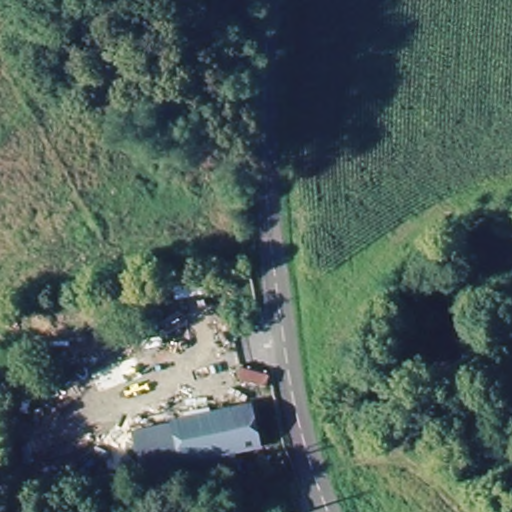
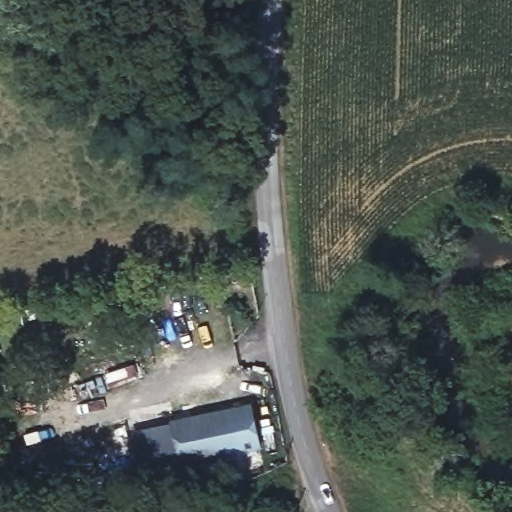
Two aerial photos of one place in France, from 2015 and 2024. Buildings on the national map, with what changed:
unchanged [(255,407),(266,456),(179,474),(174,465),(147,471),(144,430),(255,407)]

